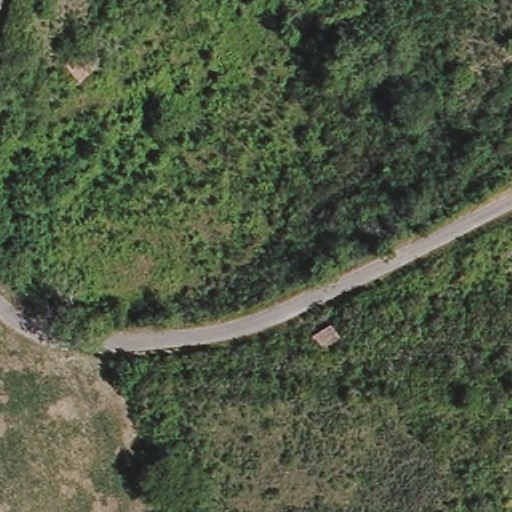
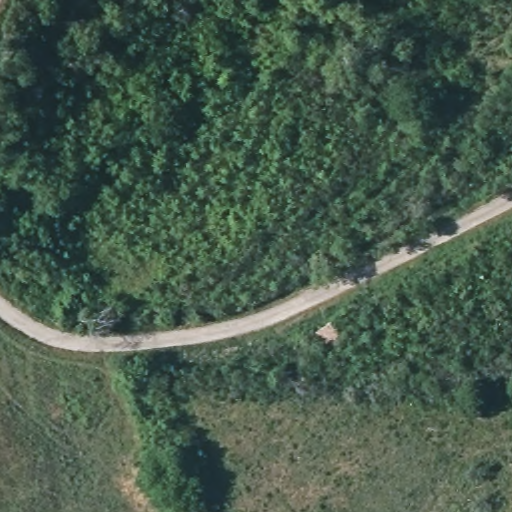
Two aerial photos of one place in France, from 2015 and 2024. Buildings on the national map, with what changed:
unchanged [(61,66),(85,47),(98,66),(79,82),(61,66)]
unchanged [(336,342),(341,351),(332,357),(318,341),(317,341),(314,337),(314,332),(319,331),(328,322),(341,336),(336,342)]

